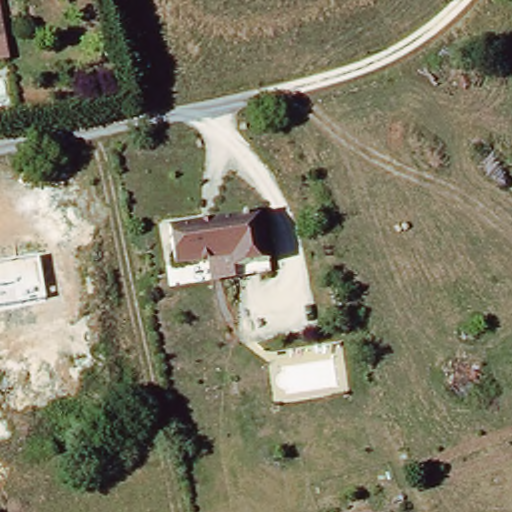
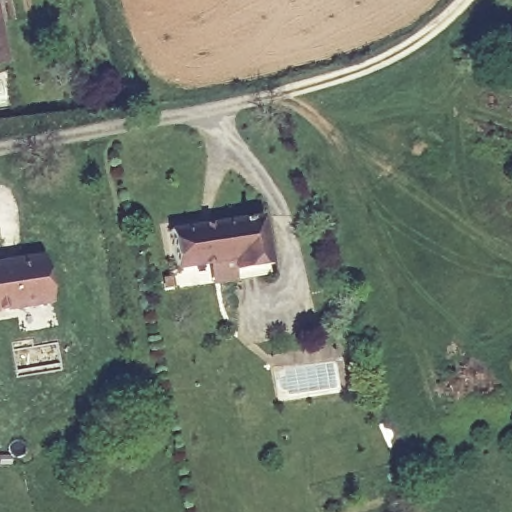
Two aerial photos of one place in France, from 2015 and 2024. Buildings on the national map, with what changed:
unchanged [(168,227),(261,209),(270,259),(233,264),(231,255),(176,265),(168,227)]
unchanged [(45,301),(0,308),(0,265),(39,259),(45,301)]

